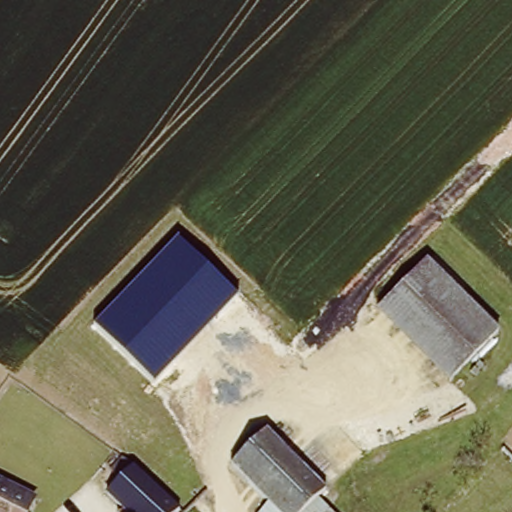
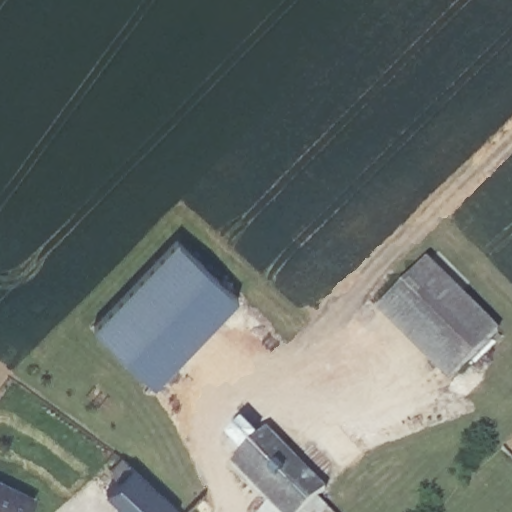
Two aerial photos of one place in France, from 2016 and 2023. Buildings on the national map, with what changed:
unchanged [(154,384),(94,326),(176,239),(238,297),(154,384)]
unchanged [(503,331),(454,381),(381,310),(429,261),(503,331)]
unchanged [(321,494),(303,512),(261,512),(272,499),(234,461),(270,425),(329,485),(321,494)]
unchanged [(115,470),(126,457),(181,511),(180,512),(127,512),(109,495),(124,479),(115,470)]
unchanged [(33,495),(25,512),(0,512),(0,476),(33,495)]
unchanged [(339,512),(303,512),(321,494),(339,512)]

